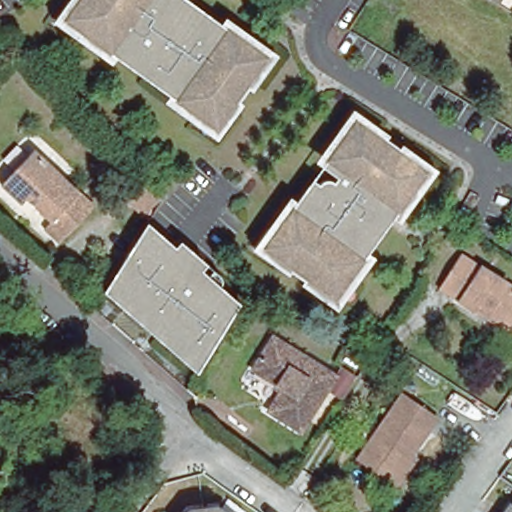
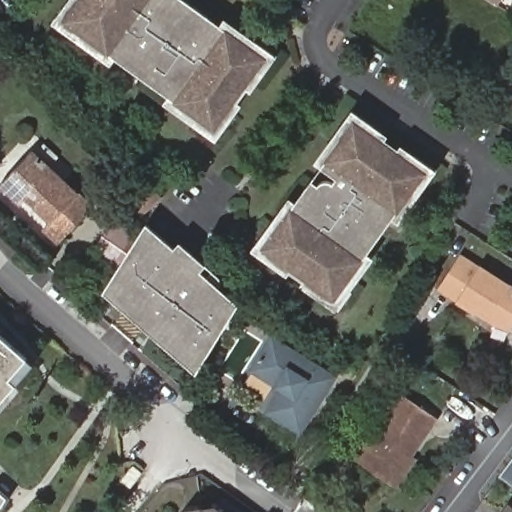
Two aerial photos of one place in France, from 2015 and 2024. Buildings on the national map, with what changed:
unchanged [(83,0),(84,0),(169,0),(222,37),(225,34),(256,55),(264,61),(245,89),(241,85),(228,104),(232,106),(213,133),(208,130),(174,105),(178,99),(152,80),(147,86),(118,65),(124,57),(116,51),(112,49),(106,57),(60,25),(78,0),(83,0)]
unchanged [(492,0),(504,0),(500,5),(492,0)]
unchanged [(377,152),(374,156),(392,170),(395,165),(421,185),(393,224),(386,220),(352,267),(358,272),(330,311),(303,291),(306,287),(288,275),(285,278),(259,259),(287,220),(294,225),(322,187),(330,193),(337,183),(334,181),(322,172),(350,133),(377,152)]
unchanged [(32,147),(78,190),(69,200),(83,214),(60,240),(45,225),(51,219),(27,196),(22,201),(1,181),(32,147)]
unchanged [(142,211),(123,190),(142,173),(162,194),(142,211)]
unchanged [(146,228),(239,310),(207,359),(195,378),(102,296),(146,228)]
unchanged [(486,310),(450,286),(471,253),(512,279),(512,327),(486,310)]
new [(0,334),(35,365),(0,404),(0,334)]
unchanged [(341,374),(306,430),(279,412),(294,389),(261,368),(282,336),(341,374)]
unchanged [(400,488),(393,483),(361,462),(404,397),(439,421),(415,458),(419,460),(400,488)]
new [(0,491),(8,497),(0,509),(0,491)]
unchanged [(188,508),(216,505),(226,512),(185,512),(188,508)]
unchanged [(510,505),(512,506),(512,512),(505,512),(510,505)]

